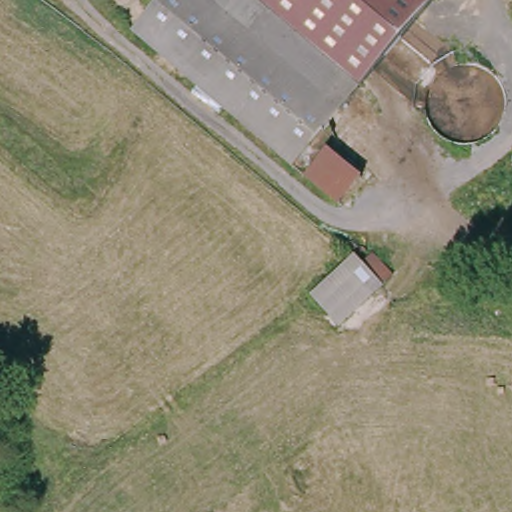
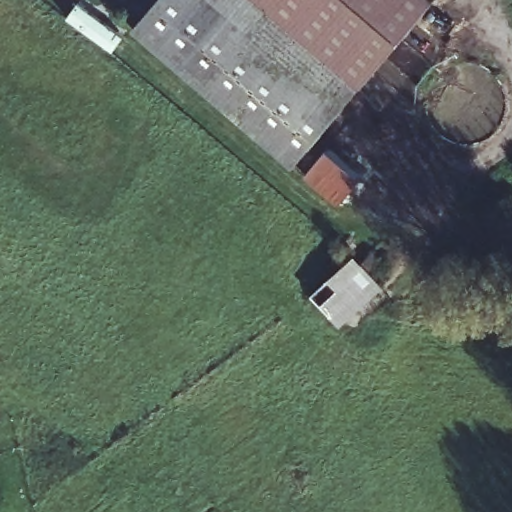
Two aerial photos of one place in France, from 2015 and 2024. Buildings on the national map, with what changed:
unchanged [(130,29),(155,0),(433,0),(361,86),(293,167),(130,29)]
unchanged [(361,175),(336,202),(301,169),(325,142),(361,175)]
unchanged [(330,319),(298,280),(317,263),(328,276),(348,260),(361,250),(385,274),(372,284),(330,319)]

